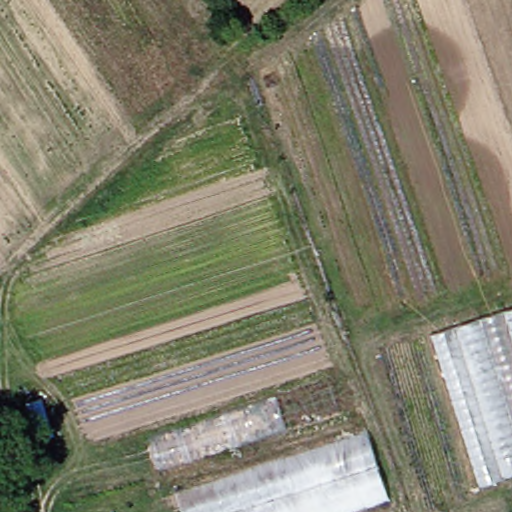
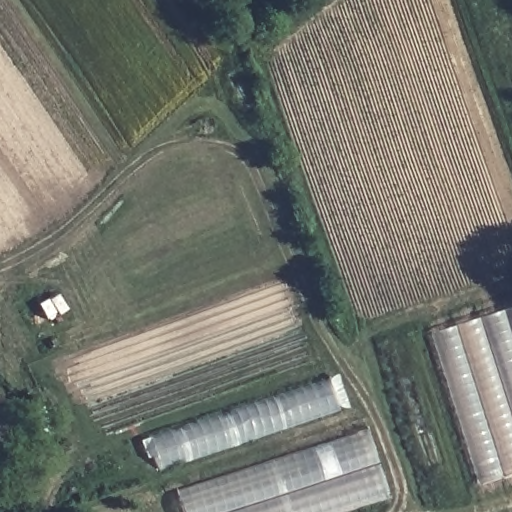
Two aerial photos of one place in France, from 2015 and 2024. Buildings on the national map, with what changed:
unchanged [(512,309),(512,468),(488,475),(443,332),(512,309)]
new [(340,412),(162,469),(151,436),(328,379),(340,412)]
unchanged [(389,505),(367,512),(183,512),(177,493),(365,432),(389,505)]

